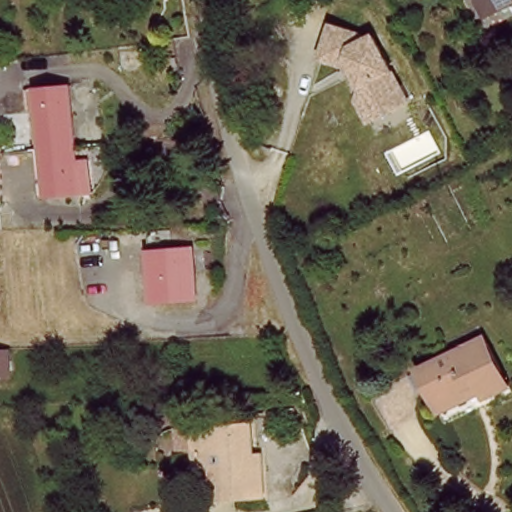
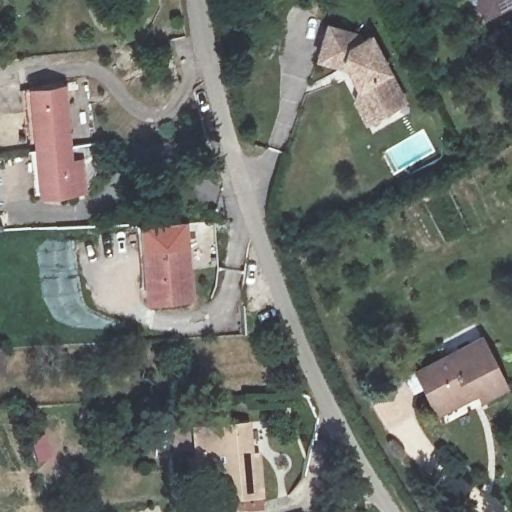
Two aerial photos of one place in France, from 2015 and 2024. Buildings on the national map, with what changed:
unchanged [(477,0),(512,0),(512,5),(486,18),(477,0)]
unchanged [(357,37),(360,42),(367,37),(405,99),(370,122),(356,101),(361,90),(348,70),(318,63),(325,30),(357,37)]
unchanged [(69,86),(73,149),(76,195),(43,199),(40,152),(35,87),(69,86)]
unchanged [(186,247),(188,302),(146,303),(145,249),(186,247)]
unchanged [(433,409),(414,373),(480,338),(505,389),(480,401),(476,393),(436,416),(433,409)]
unchanged [(244,424),(246,458),(256,458),(259,500),(211,504),(208,469),(190,471),(189,454),(186,427),(244,424)]

